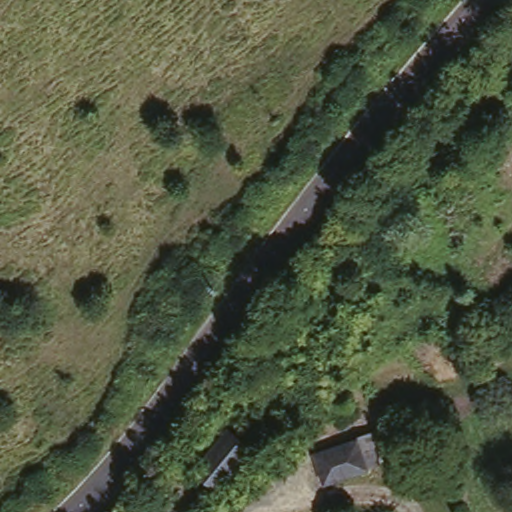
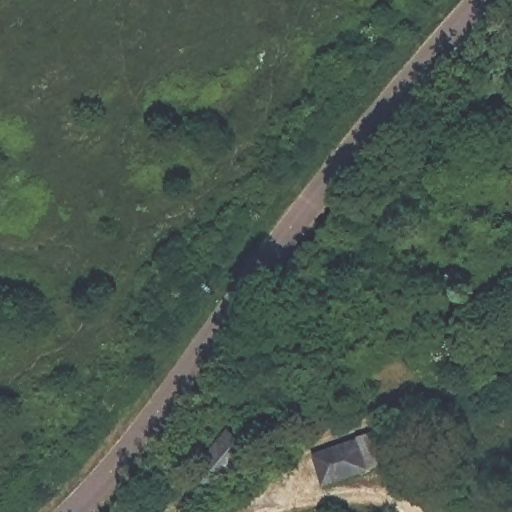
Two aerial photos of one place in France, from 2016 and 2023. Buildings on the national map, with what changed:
unchanged [(512,324),(512,337),(506,327),(512,324)]
unchanged [(310,452),(383,427),(390,447),(380,449),(383,470),(321,486),(310,452)]
unchanged [(231,434),(254,455),(219,496),(195,474),(231,434)]

